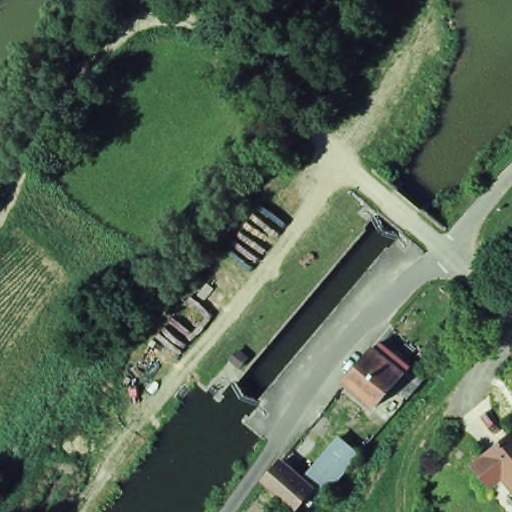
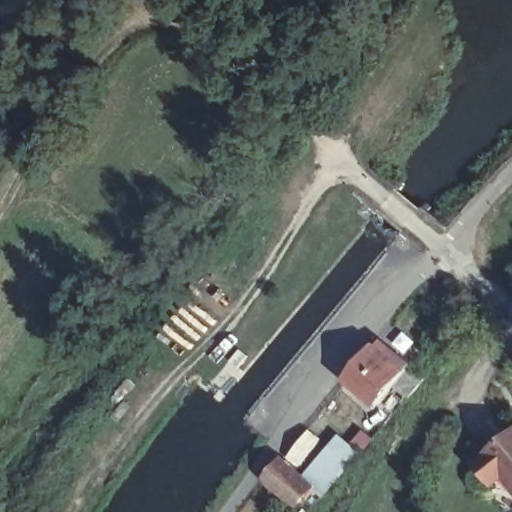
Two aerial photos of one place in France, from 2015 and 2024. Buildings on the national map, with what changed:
unchanged [(406,402),(391,390),(376,407),(344,381),(374,346),(380,339),(412,367),(426,380),(406,402)]
unchanged [(512,479),(507,473),(496,483),(478,463),(512,435),(512,479)]
unchanged [(320,485),(304,469),(328,441),(352,463),(321,496),(315,492),(320,485)]
unchanged [(302,512),(297,512),(265,484),(289,453),(304,469),(320,485),(315,492),(302,512)]

